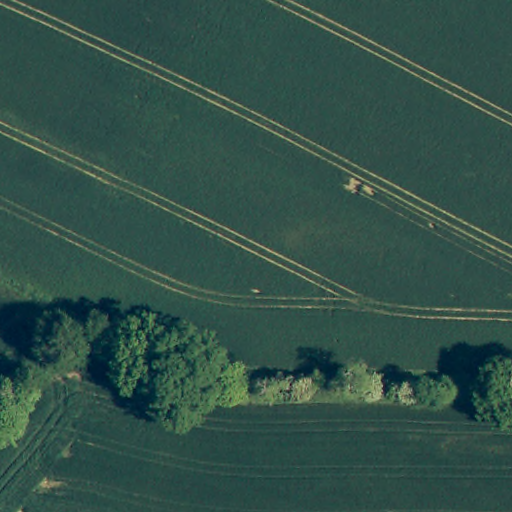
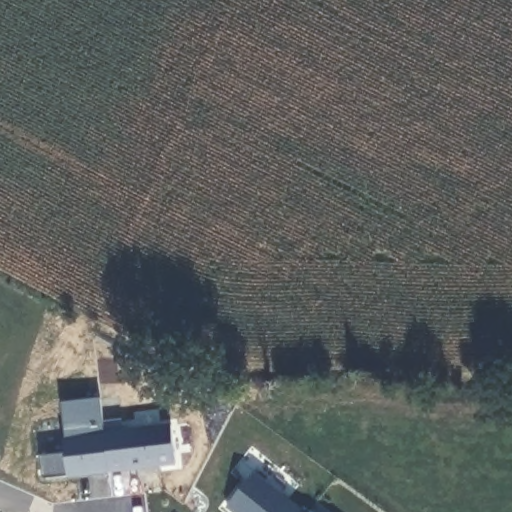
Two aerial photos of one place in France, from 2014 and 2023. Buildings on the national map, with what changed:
new [(45,480),(40,478),(37,454),(65,450),(64,435),(68,435),(63,397),(102,392),(112,471),(45,480)]
new [(106,423),(125,420),(126,430),(175,424),(180,463),(112,471),(106,423)]

